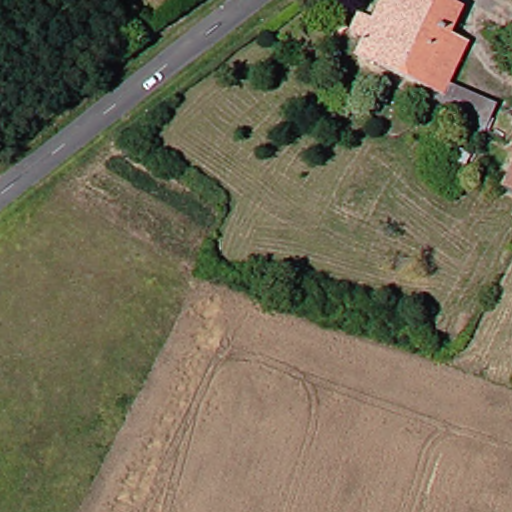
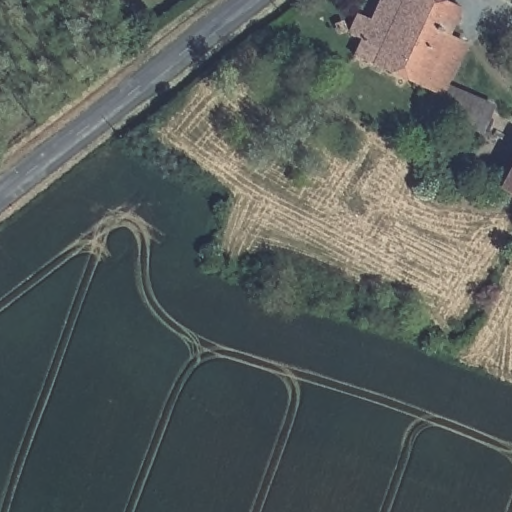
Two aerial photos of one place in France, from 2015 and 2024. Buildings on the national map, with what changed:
unchanged [(421,84),(352,55),(357,41),(340,34),(348,14),(364,20),(373,0),(447,0),(452,3),(443,27),(462,35),(444,84),(436,81),(426,108),(415,103),(421,84)]
unchanged [(436,81),(444,84),(480,98),(470,126),(426,108),(436,81)]
unchanged [(512,156),(512,195),(498,190),(512,156)]

